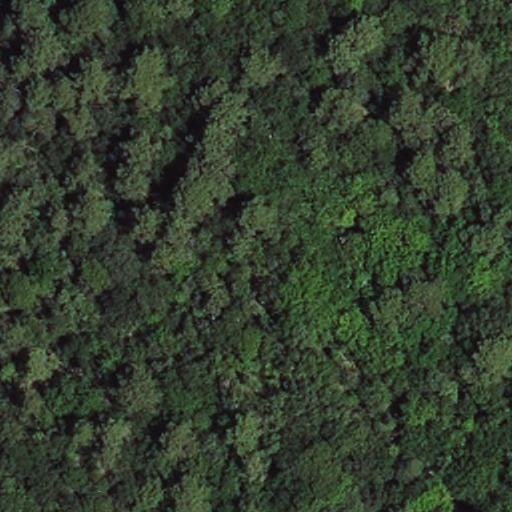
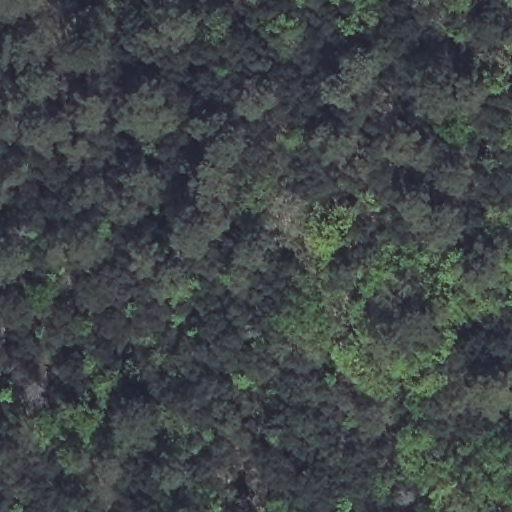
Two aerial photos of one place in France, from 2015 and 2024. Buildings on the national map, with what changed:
[]

